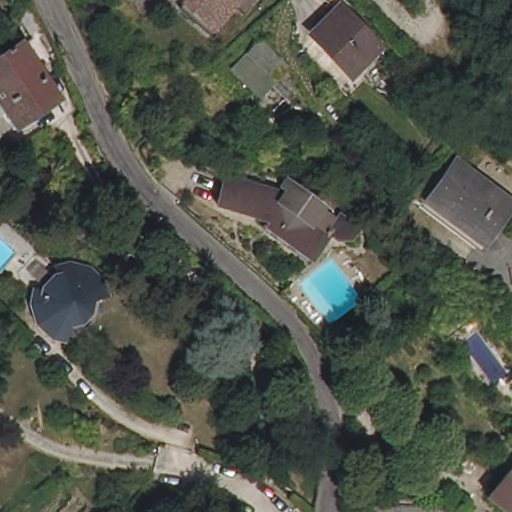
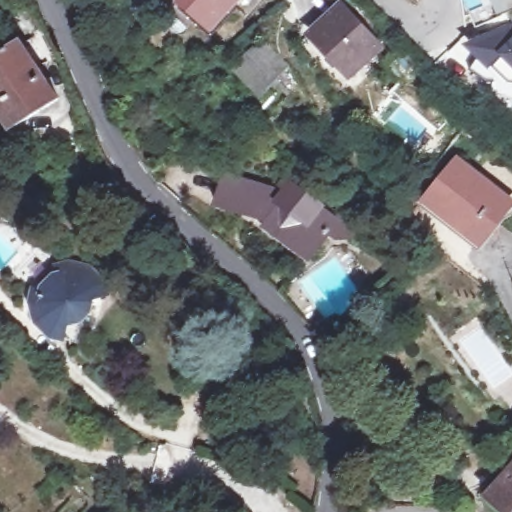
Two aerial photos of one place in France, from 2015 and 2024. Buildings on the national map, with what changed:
unchanged [(214,23),(189,0),(237,0),(214,23)]
unchanged [(61,22),(44,31),(34,12),(51,2),(61,22)]
unchanged [(356,73),(320,33),(345,9),(382,49),(356,73)]
new [(512,23),(512,86),(508,86),(465,44),(512,23)]
unchanged [(275,98),(235,57),(250,41),(261,30),(286,57),(276,67),(290,82),(275,98)]
unchanged [(73,95),(24,122),(33,138),(30,140),(27,141),(25,141),(21,142),(19,141),(16,141),(12,139),(11,138),(7,133),(0,122),(0,56),(37,35),(73,95)]
unchanged [(483,242),(425,199),(460,154),(512,193),(512,204),(483,242)]
unchanged [(357,233),(343,235),(333,229),(320,250),(271,214),(222,197),(230,169),(290,190),(295,182),(342,217),(347,211),(364,223),(357,233)]
unchanged [(71,347),(64,346),(53,344),(38,330),(37,329),(33,310),(35,297),(43,298),(45,292),(55,281),(60,280),(60,270),(71,269),(91,274),(107,287),(105,302),(89,300),(92,305),(90,316),(80,324),(73,329),(75,329),(71,347)]
unchanged [(296,285),(329,324),(331,326),(317,337),(315,333),(286,296),(284,294),(296,285)]
unchanged [(503,512),(482,494),(512,460),(512,512),(503,512)]
unchanged [(140,512),(139,510),(156,496),(167,509),(163,512),(140,512)]

